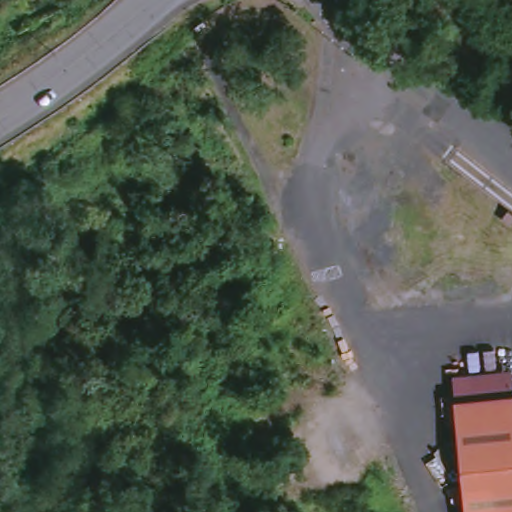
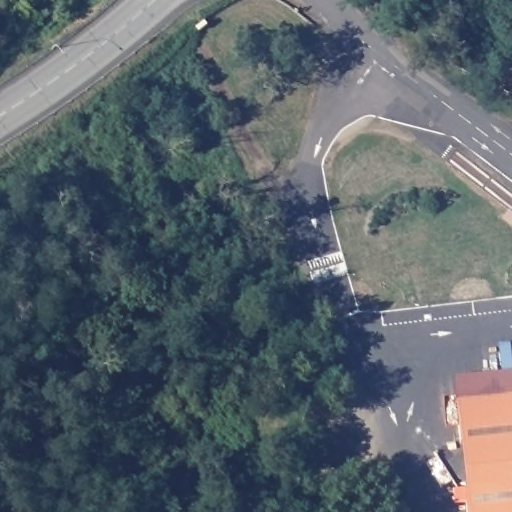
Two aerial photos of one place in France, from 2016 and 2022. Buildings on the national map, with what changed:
unchanged [(485,82),(442,63),(453,38),(496,58),(485,82)]
unchanged [(498,89),(511,62),(512,62),(512,95),(498,89)]
unchanged [(463,380),(512,374),(512,398),(466,404),(463,380)]
unchanged [(478,504),(468,505),(466,491),(476,489),(471,444),(466,404),(512,398),(512,512),(479,512),(478,504)]

